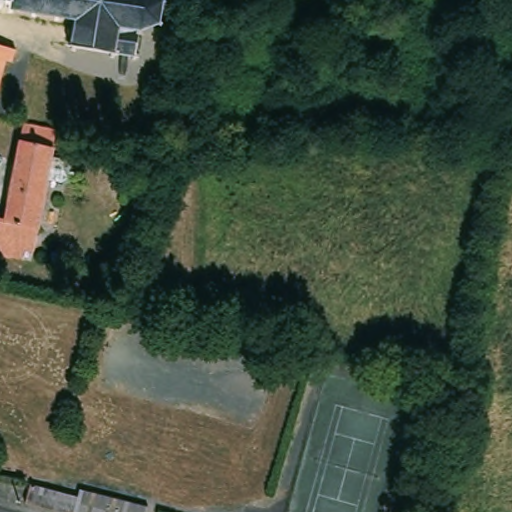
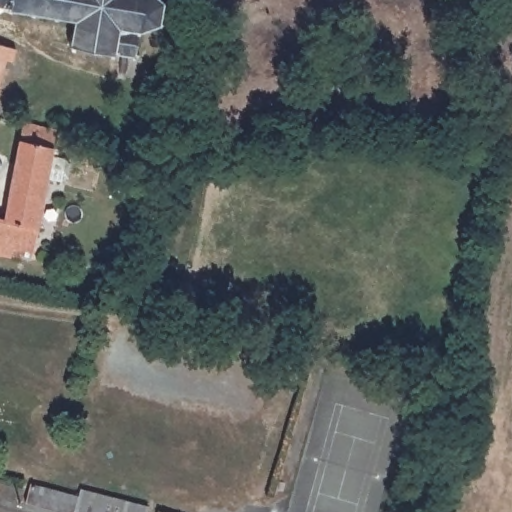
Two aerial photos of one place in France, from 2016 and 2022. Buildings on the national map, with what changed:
unchanged [(0,11),(0,0),(161,0),(163,1),(166,1),(167,5),(164,5),(162,22),(164,25),(163,27),(160,26),(141,33),(137,56),(141,58),(140,60),(137,60),(137,63),(133,63),(133,59),(116,56),(115,59),(111,58),(111,55),(78,49),(77,53),(73,52),(73,48),(70,48),(71,44),(74,44),(78,21),(60,18),(59,22),(54,21),(54,17),(37,14),(36,18),(32,17),(32,14),(16,11),(14,14),(11,14),(11,11),(4,2),(2,7),(0,11)]
unchanged [(13,64),(6,62),(0,85),(0,48),(16,52),(13,64)]
unchanged [(25,130),(57,137),(34,257),(23,255),(20,263),(0,260),(0,225),(6,226),(25,130)]
unchanged [(34,480),(78,491),(80,485),(150,504),(149,512),(54,512),(27,503),(34,480)]

